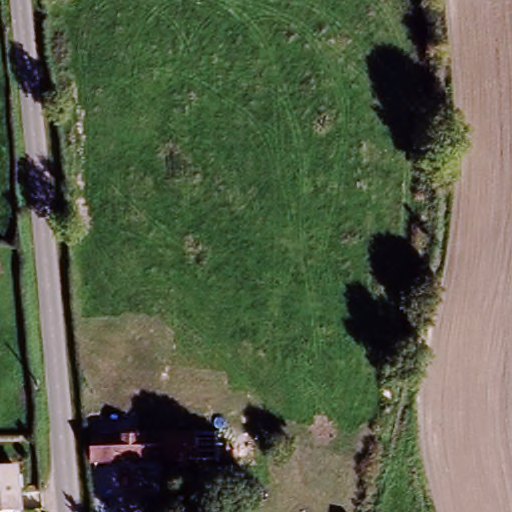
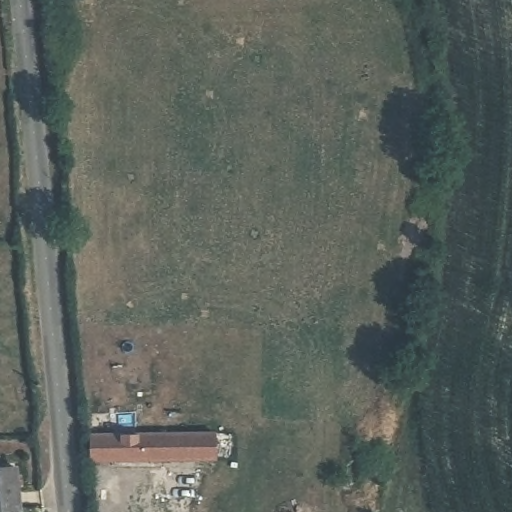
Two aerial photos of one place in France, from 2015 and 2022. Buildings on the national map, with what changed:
unchanged [(212,432),(211,457),(192,457),(135,457),(91,456),(90,435),(193,433),(212,432)]
unchanged [(12,508),(0,509),(0,470),(8,469),(12,508)]

